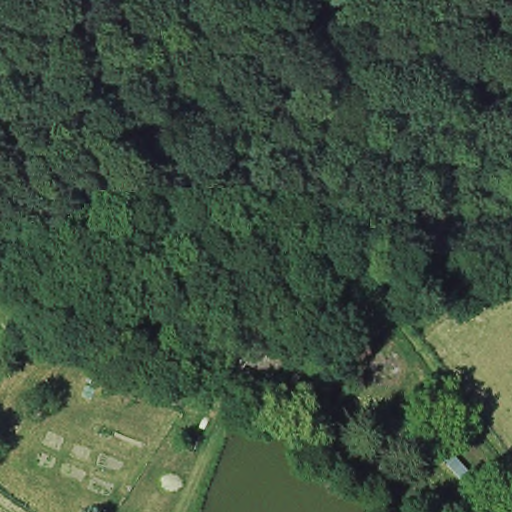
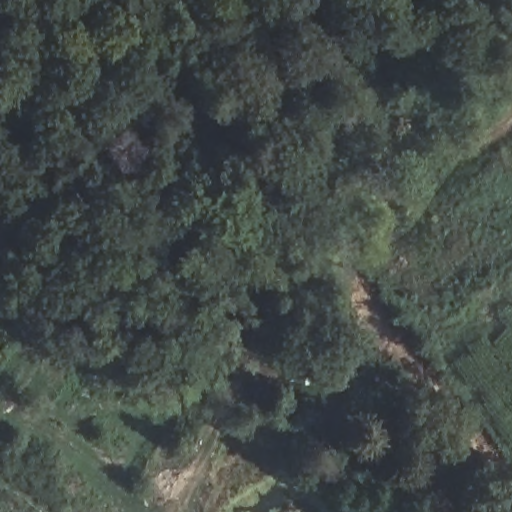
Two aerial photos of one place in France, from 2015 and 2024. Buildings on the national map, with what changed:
unchanged [(300,346),(287,381),(227,354),(240,322),(300,346)]

